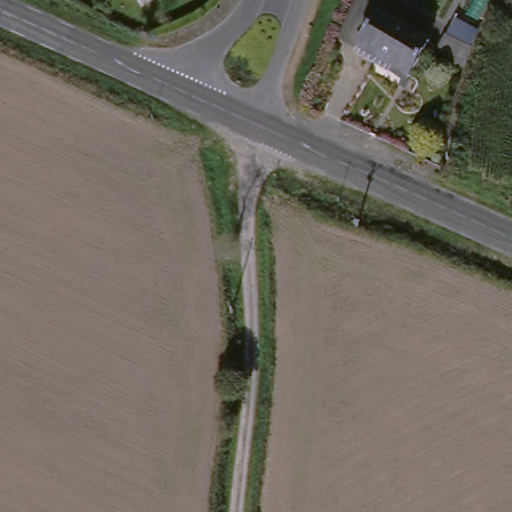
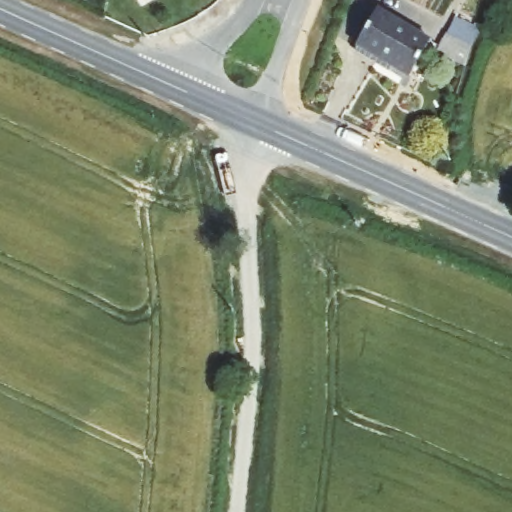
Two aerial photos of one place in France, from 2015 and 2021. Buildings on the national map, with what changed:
unchanged [(426,42),(408,80),(386,69),(356,54),(374,17),(426,42)]

